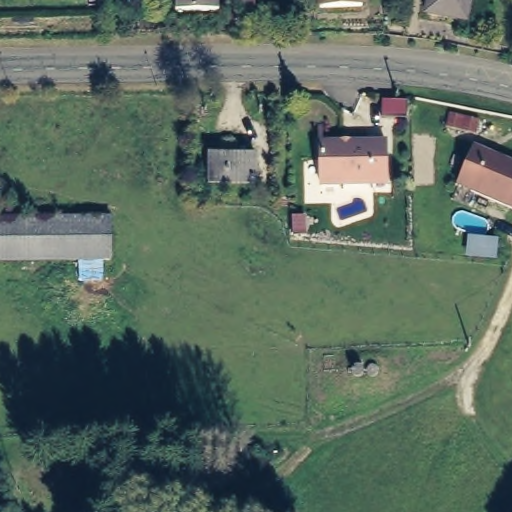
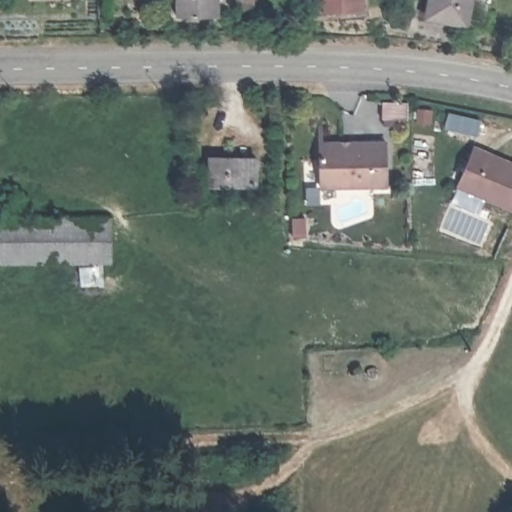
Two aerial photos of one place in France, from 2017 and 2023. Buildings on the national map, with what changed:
unchanged [(180,15),(180,0),(221,0),(221,14),(180,15)]
unchanged [(323,9),(323,0),(363,0),(363,9),(323,9)]
unchanged [(428,17),(433,0),(473,0),(468,27),(428,17)]
unchanged [(383,144),(384,187),(322,189),(321,146),(383,144)]
unchanged [(512,211),(460,192),(476,149),(512,162),(512,211)]
unchanged [(257,159),(257,184),(214,183),(214,158),(257,159)]
unchanged [(112,216),(112,258),(0,259),(0,217),(112,216)]

